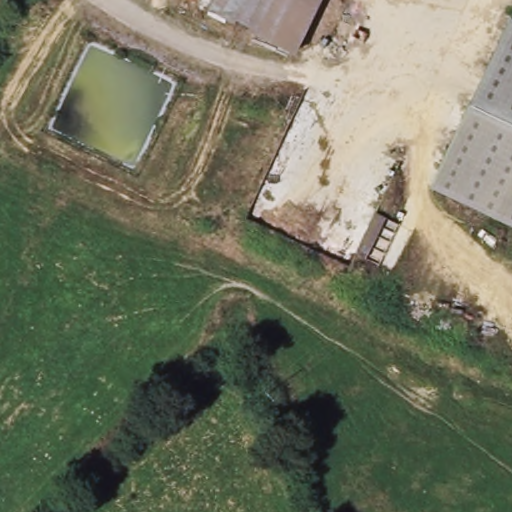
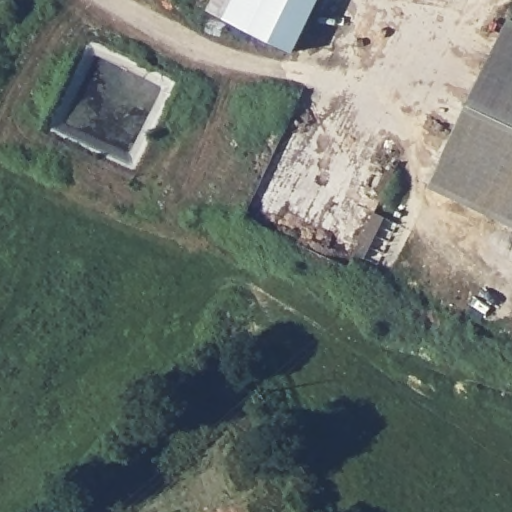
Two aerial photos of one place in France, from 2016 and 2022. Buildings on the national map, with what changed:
unchanged [(296,52),(209,10),(214,0),(321,0),(296,52)]
unchanged [(432,185),(512,20),(512,224),(432,185)]

